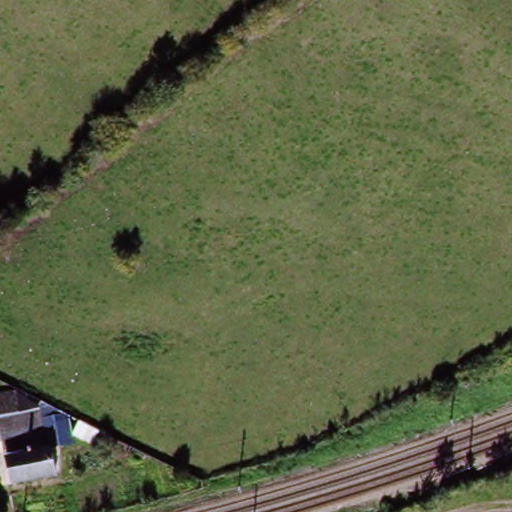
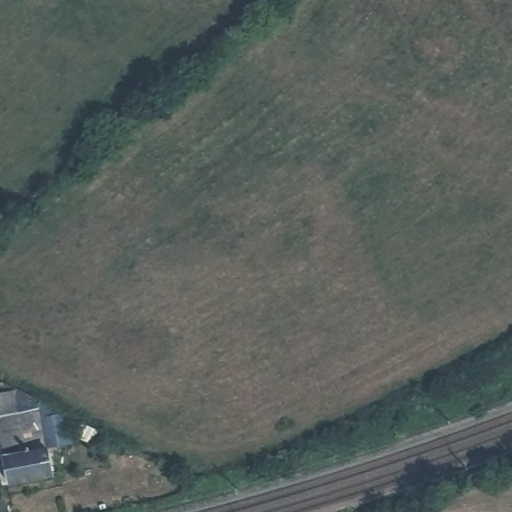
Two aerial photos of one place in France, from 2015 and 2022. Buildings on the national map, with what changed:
unchanged [(66,418),(72,450),(48,451),(55,482),(6,491),(0,462),(0,392),(5,391),(66,418)]

